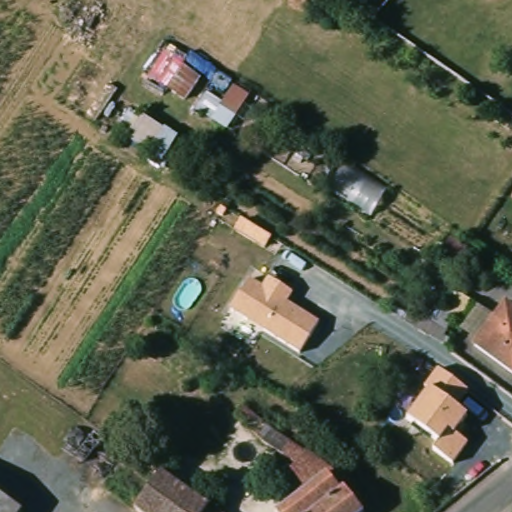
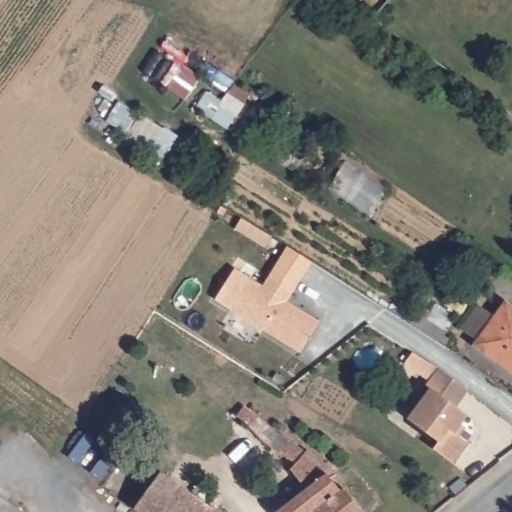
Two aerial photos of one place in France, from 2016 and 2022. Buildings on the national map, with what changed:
unchanged [(230,309),(249,277),(263,286),(269,277),(293,292),(287,302),(319,322),(300,352),(230,309)]
unchanged [(512,312),(512,369),(480,348),(505,308),(512,312)]
unchanged [(408,419),(428,391),(423,387),(438,368),(468,390),(455,407),(468,416),(461,425),(466,429),(460,436),(469,442),(454,463),(433,449),(440,442),(408,419)]
unchanged [(322,476),(328,483),(335,490),(343,486),(348,491),(363,508),(365,509),(362,511),(361,512),(275,512),(274,511),(301,488),(282,468),(287,463),(259,436),(267,427),(295,455),(300,451),(326,467),(322,476)]
unchanged [(157,471),(205,503),(199,512),(140,512),(132,507),(157,471)]
unchanged [(19,512),(0,512),(0,499),(19,512)]
unchanged [(219,512),(199,512),(205,503),(219,512)]

